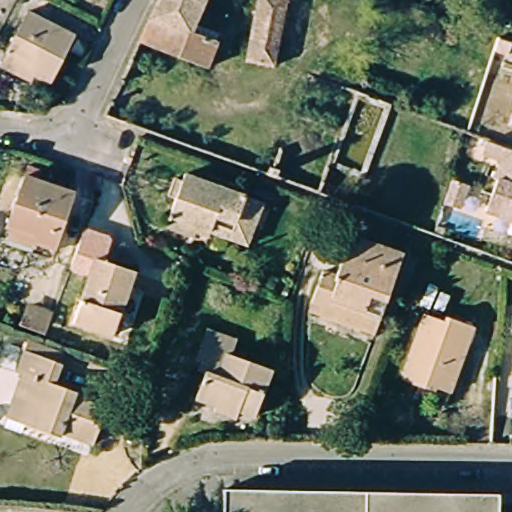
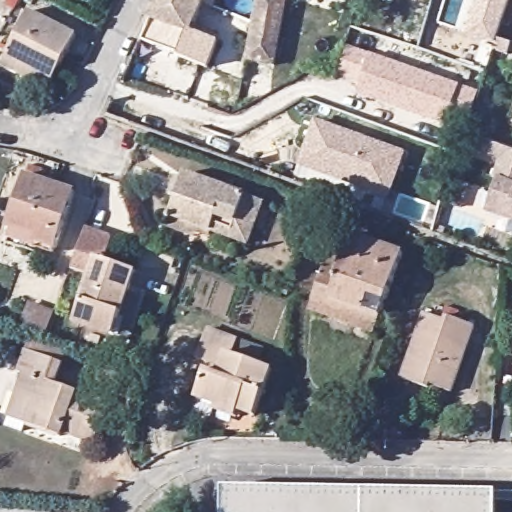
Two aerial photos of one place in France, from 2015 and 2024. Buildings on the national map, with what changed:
unchanged [(203,0),(210,3),(196,31),(225,45),(213,71),(147,41),(166,0),(203,0)]
unchanged [(203,0),(211,0),(210,3),(203,0)]
unchanged [(276,65),(248,61),(257,0),(285,0),(278,46),(276,65)]
new [(466,34),(476,0),(509,0),(495,44),(466,34)]
unchanged [(13,53),(8,50),(13,41),(28,13),(75,36),(56,72),(50,84),(33,76),(8,63),(13,53)]
new [(371,54),(460,85),(479,92),(468,122),(450,115),(446,126),(356,95),(360,83),(337,76),(348,46),(371,54)]
new [(298,166),(315,120),(407,153),(390,200),(298,166)]
unchanged [(484,204),(495,173),(492,172),(499,154),(479,146),(483,135),(503,141),(512,144),(512,214),(484,204)]
unchanged [(203,227),(199,237),(171,226),(175,216),(181,197),(175,195),(181,177),(188,179),(190,173),(196,175),(260,199),(267,202),(258,226),(251,245),(233,238),(216,232),(203,227)]
unchanged [(80,192),(60,250),(43,243),(40,252),(13,244),(17,230),(13,229),(30,177),(80,192)]
unchanged [(331,272),(342,276),(358,236),(409,255),(383,325),(380,334),(318,311),(321,302),(331,272)]
unchanged [(141,271),(120,334),(80,321),(103,258),(141,271)]
new [(32,307),(60,317),(53,336),(25,326),(32,307)]
unchanged [(434,388),(433,391),(407,381),(430,315),(450,322),(452,319),(479,329),(455,395),(434,388)]
unchanged [(212,331),(241,341),(238,353),(276,369),(259,417),(246,413),(243,420),(221,413),(223,408),(203,401),(211,376),(205,373),(208,364),(201,362),(212,331)]
unchanged [(94,442),(63,431),(60,437),(8,418),(24,371),(19,370),(26,348),(63,362),(55,383),(108,403),(94,442)]
unchanged [(230,489),(503,494),(502,512),(229,512),(230,489)]

